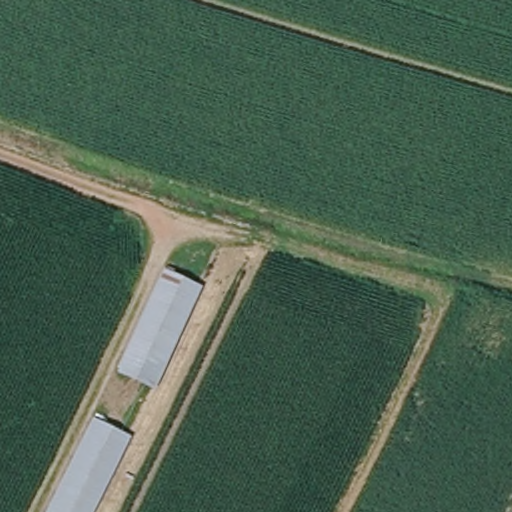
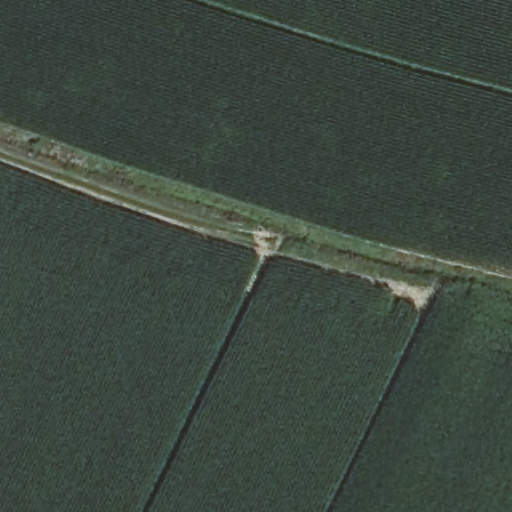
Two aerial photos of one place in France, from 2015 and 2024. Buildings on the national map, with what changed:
demolished [(204,288),(154,391),(112,373),(160,269),(204,288)]
demolished [(93,512),(43,512),(90,418),(129,438),(93,512)]

